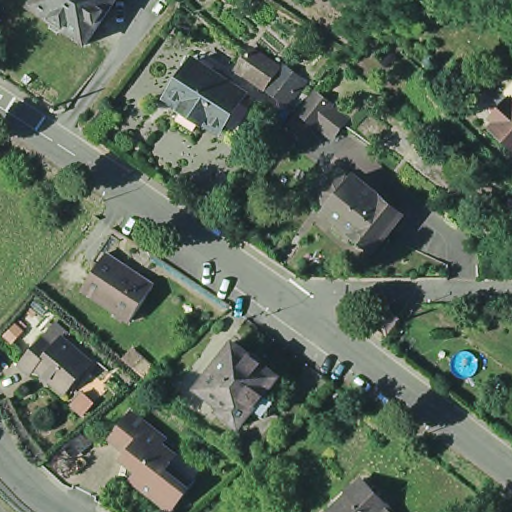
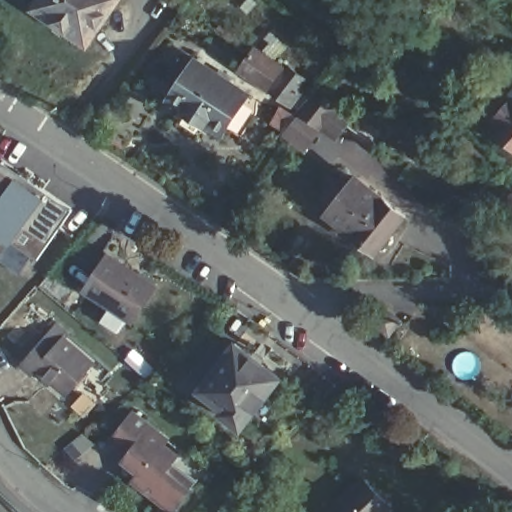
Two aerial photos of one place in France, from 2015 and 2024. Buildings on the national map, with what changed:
unchanged [(67,38),(60,38),(53,34),(51,27),(30,11),(37,0),(117,0),(84,49),(67,38)]
unchanged [(249,77),(221,59),(234,40),(262,58),(265,54),(288,70),(283,77),(292,83),(282,98),(273,93),(249,77)]
unchanged [(216,133),(197,120),(191,131),(178,121),(185,112),(167,99),(192,61),(211,74),(215,69),(229,78),(226,84),(242,95),(216,133)]
unchanged [(295,85),(330,111),(314,131),(282,105),(295,85)]
unchanged [(499,125),(495,121),(512,104),(512,142),(497,126),(499,125)]
unchanged [(122,118),(102,143),(87,133),(108,106),(122,118)]
unchanged [(368,111),(392,126),(378,149),(353,136),(368,111)]
new [(22,272),(0,257),(0,159),(70,205),(22,272)]
unchanged [(387,233),(389,236),(388,240),(382,249),(375,248),(372,251),(354,236),(350,240),(341,232),(344,227),(326,211),(353,177),(370,192),(375,187),(382,193),(378,198),(400,215),(387,233)]
unchanged [(106,254),(152,286),(128,320),(82,289),(106,254)]
unchanged [(377,322),(387,308),(402,320),(390,333),(377,322)]
unchanged [(66,394),(37,369),(32,374),(21,364),(47,334),(57,342),(62,337),(92,364),(66,394)]
unchanged [(220,407),(225,402),(207,386),(245,343),(287,379),(272,396),(278,402),(266,416),(260,410),(245,427),(227,410),(225,412),(220,407)]
unchanged [(167,434),(164,439),(177,449),(167,462),(192,481),(176,503),(137,472),(142,465),(127,453),(130,447),(114,434),(134,408),(167,434)]
unchanged [(337,509),(365,479),(393,505),(390,509),(394,512),(340,512),(337,509)]

